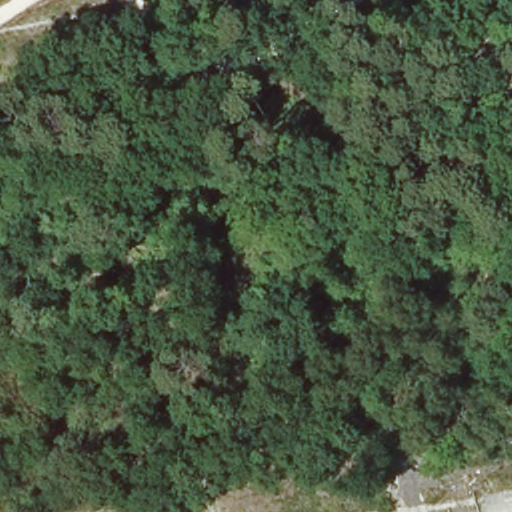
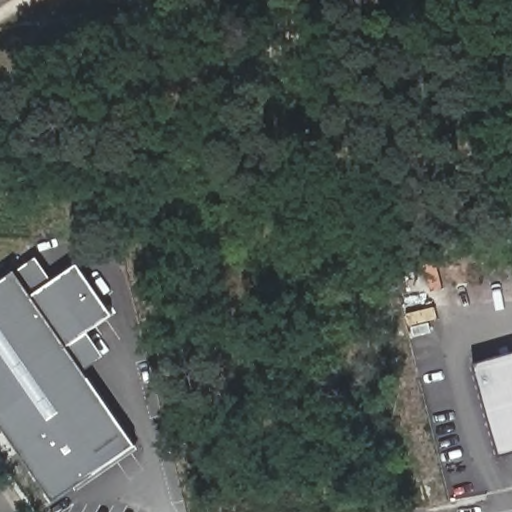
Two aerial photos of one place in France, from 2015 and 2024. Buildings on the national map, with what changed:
new [(37,256),(53,281),(78,263),(113,314),(89,331),(106,356),(85,371),(137,445),(56,501),(0,422),(0,280),(16,270),(37,256)]
new [(476,363),(512,353),(512,452),(502,455),(476,363)]

